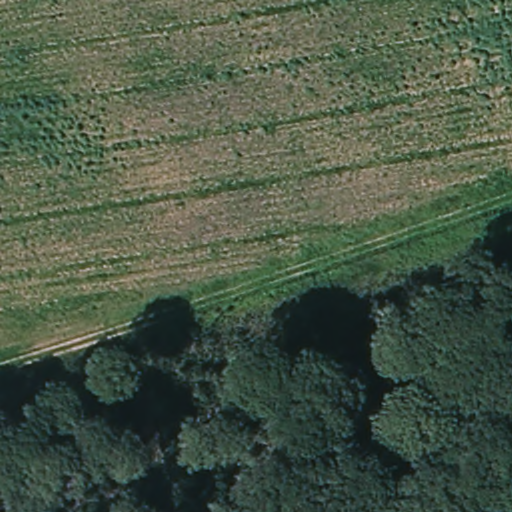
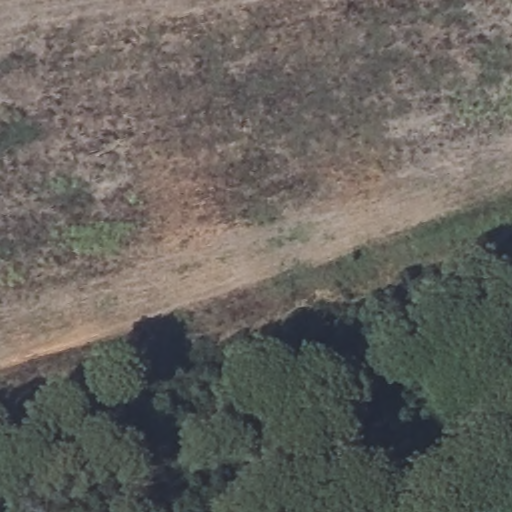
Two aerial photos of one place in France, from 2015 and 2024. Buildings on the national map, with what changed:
[]

